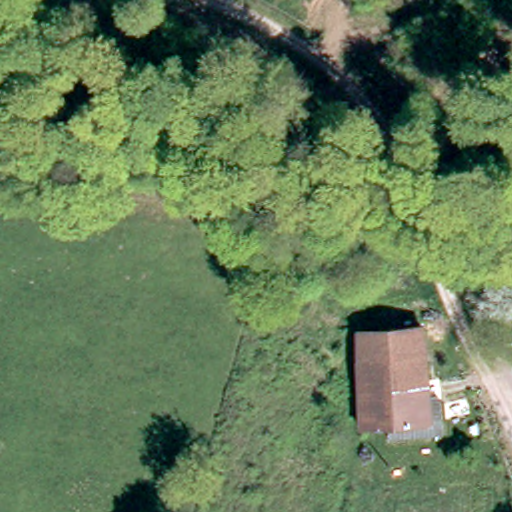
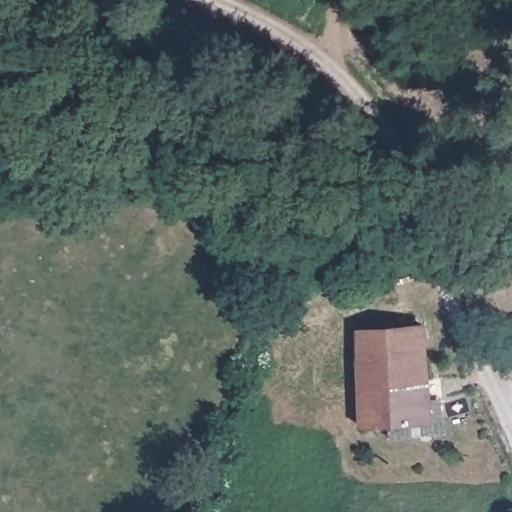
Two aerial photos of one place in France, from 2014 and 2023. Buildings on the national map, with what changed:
unchanged [(384,415),(360,417),(356,324),(419,321),(424,396),(435,395),(439,439),(386,445),(384,415)]

